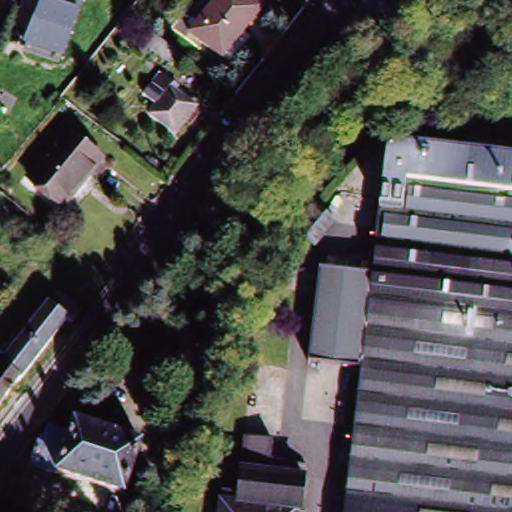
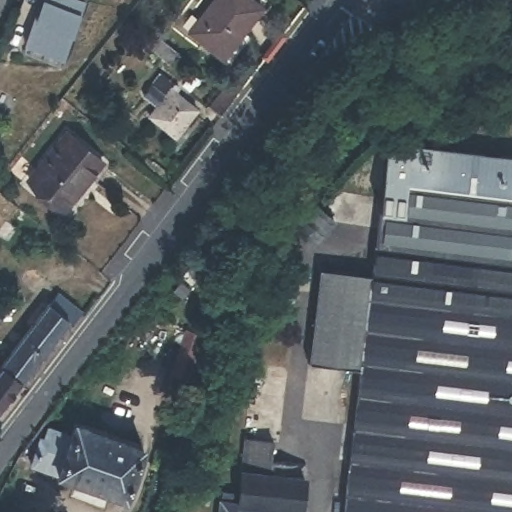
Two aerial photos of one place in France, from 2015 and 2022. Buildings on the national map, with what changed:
unchanged [(41,0),(82,0),(62,57),(23,45),(41,0)]
unchanged [(215,0),(242,0),(253,9),(218,53),(189,32),(215,0)]
unchanged [(166,59),(138,39),(148,27),(176,47),(166,59)]
unchanged [(179,137),(153,116),(158,110),(141,97),(153,84),(150,82),(159,71),(178,86),(175,88),(201,109),(179,137)]
unchanged [(66,133),(103,162),(63,214),(25,185),(66,133)]
unchanged [(385,184),(349,512),(340,512),(356,372),(304,365),(314,271),(368,277),(379,162),(381,146),(407,148),(512,159),(512,197),(385,184)]
unchanged [(349,512),(385,184),(512,197),(512,512),(349,512)]
unchanged [(311,207),(328,224),(303,248),(287,232),(311,207)]
unchanged [(51,314),(61,302),(78,315),(67,329),(64,326),(18,384),(0,408),(0,368),(45,309),(51,314)]
unchanged [(186,364),(180,383),(163,377),(178,332),(196,338),(186,364)]
unchanged [(71,437),(75,425),(143,448),(124,500),(58,477),(71,437)]
unchanged [(30,467),(39,439),(44,441),(48,429),(71,437),(58,477),(34,469),(30,467)]
unchanged [(218,506),(218,495),(234,496),(238,461),(239,451),(241,433),(271,436),(269,454),(304,457),(303,469),(300,469),(295,512),(214,512),(214,506),(218,506)]

